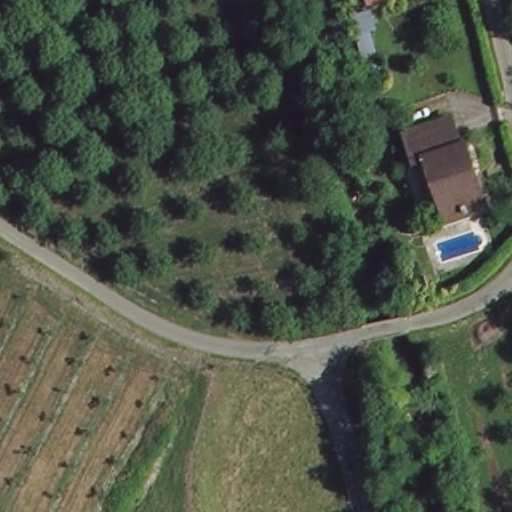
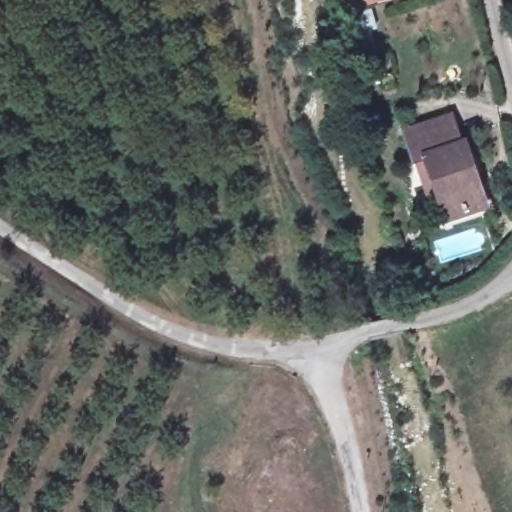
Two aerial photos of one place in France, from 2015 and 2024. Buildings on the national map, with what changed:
unchanged [(452,145),(415,154),(410,129),(465,110),(470,140),(452,145)]
unchanged [(476,140),(490,204),(445,220),(433,160),(417,165),(415,154),(452,145),(470,140),(476,140)]

